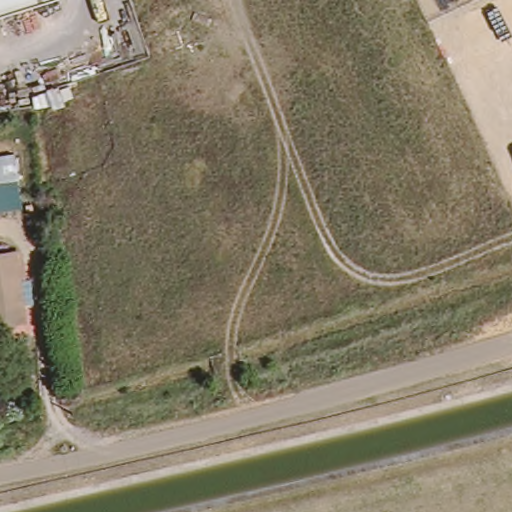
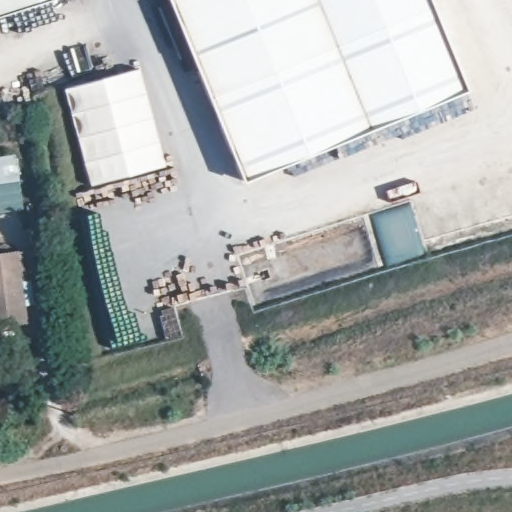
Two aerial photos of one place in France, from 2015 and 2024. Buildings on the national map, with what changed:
unchanged [(0,16),(0,0),(51,0),(0,16)]
new [(468,98),(243,187),(168,0),(426,0),(468,98)]
new [(138,68),(164,165),(89,186),(63,89),(138,68)]
unchanged [(35,186),(0,191),(0,159),(29,154),(35,186)]
unchanged [(32,328),(0,334),(0,259),(23,256),(32,328)]

